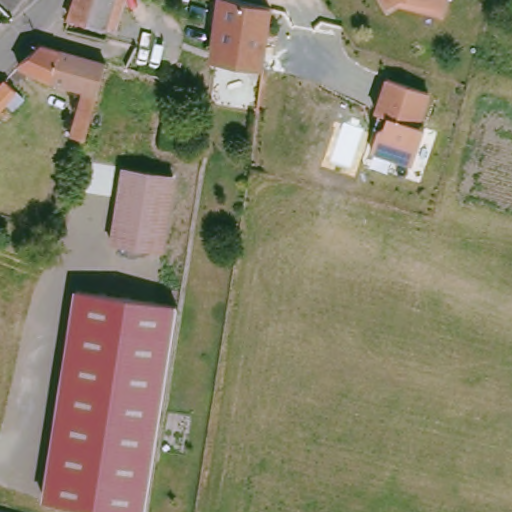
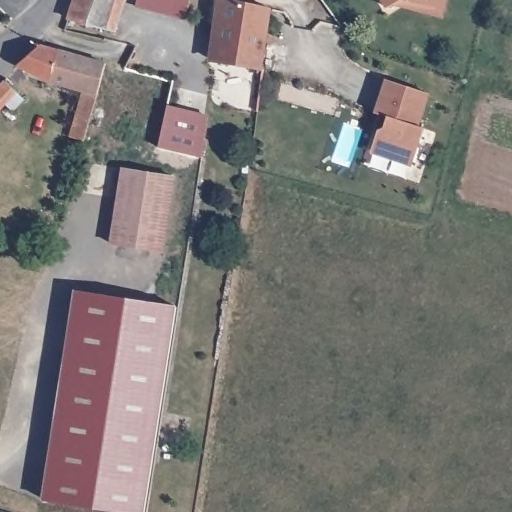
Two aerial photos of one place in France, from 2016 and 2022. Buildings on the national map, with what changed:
unchanged [(98,28),(65,21),(70,0),(107,0),(98,28)]
new [(186,19),(137,8),(138,0),(190,0),(186,19)]
unchanged [(214,63),(221,22),(211,21),(215,0),(230,0),(269,7),(260,71),(214,63)]
unchanged [(390,7),(385,0),(402,0),(390,7)]
unchanged [(443,9),(424,5),(407,0),(445,0),(443,9)]
unchanged [(75,138),(88,91),(57,82),(22,67),(42,47),(108,60),(87,141),(75,138)]
unchanged [(427,90),(418,123),(426,125),(416,162),(374,152),(380,130),(385,125),(388,115),(376,112),(385,79),(427,90)]
unchanged [(5,86),(16,96),(0,113),(0,92),(5,86)]
new [(160,146),(169,105),(210,115),(204,157),(160,146)]
unchanged [(170,255),(109,244),(122,170),(183,180),(170,255)]
unchanged [(144,512),(135,512),(43,495),(75,288),(176,302),(144,512)]
unchanged [(13,512),(0,512),(0,509),(13,512)]

